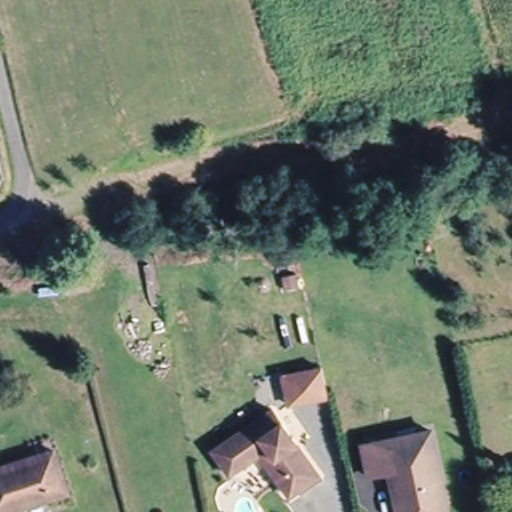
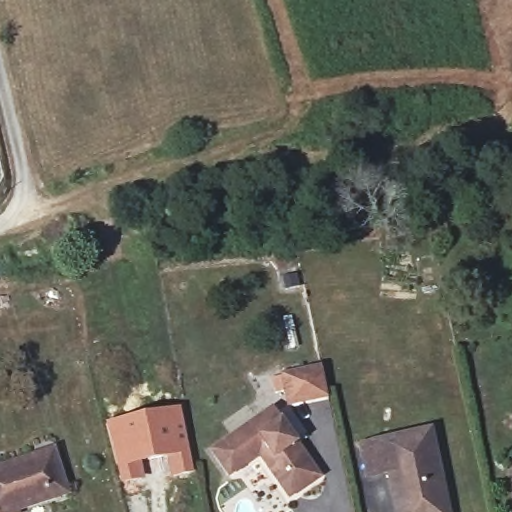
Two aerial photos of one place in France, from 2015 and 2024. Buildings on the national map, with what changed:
unchanged [(321,369),(327,398),(289,407),(281,378),(321,369)]
new [(180,406),(194,470),(169,476),(164,457),(142,461),(145,475),(120,482),(105,424),(180,406)]
unchanged [(270,466),(263,456),(232,477),(216,452),(276,411),(323,479),(301,494),(293,500),(270,466)]
unchanged [(371,479),(364,447),(434,432),(450,509),(451,512),(400,512),(391,474),(371,479)]
unchanged [(53,445),(66,489),(0,509),(0,461),(53,445)]

